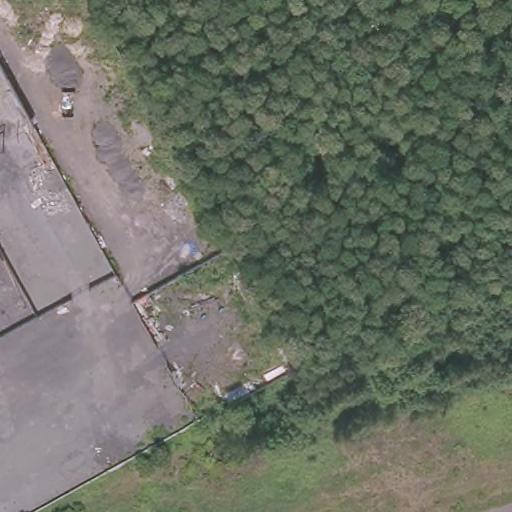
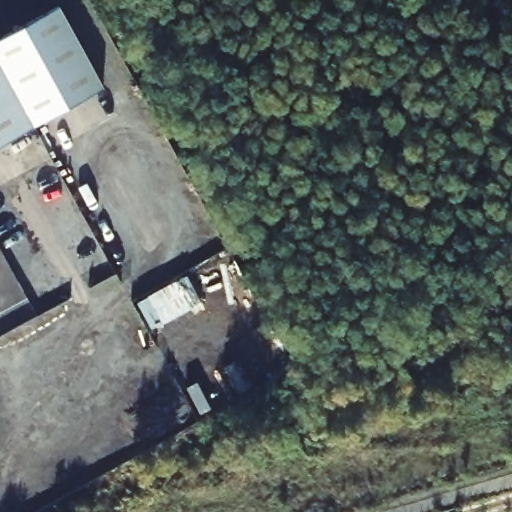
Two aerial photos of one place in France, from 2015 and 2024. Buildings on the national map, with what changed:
new [(0,65),(0,40),(61,5),(105,86),(35,126),(0,65)]
unchanged [(35,126),(0,145),(0,64),(35,126)]

